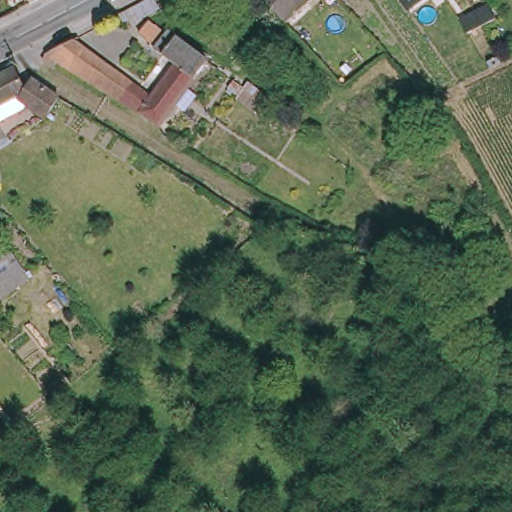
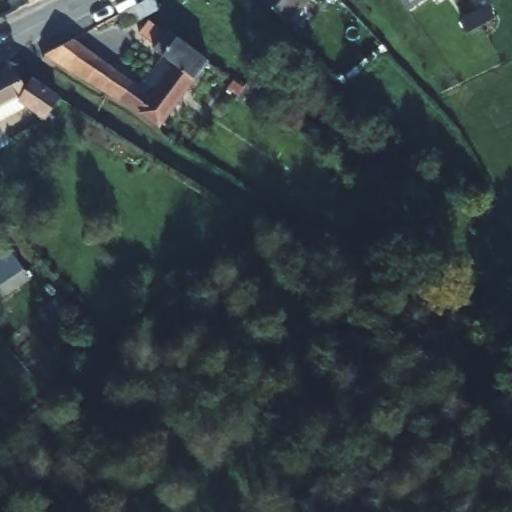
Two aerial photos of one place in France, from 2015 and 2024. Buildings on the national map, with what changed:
unchanged [(289,29),(276,16),(261,0),(319,0),(289,29)]
unchanged [(338,3),(335,0),(341,0),(338,3)]
unchanged [(409,13),(398,0),(424,0),(409,13)]
unchanged [(133,8),(140,24),(107,39),(99,25),(133,8)]
unchanged [(65,46),(78,40),(96,52),(158,97),(181,65),(161,48),(159,44),(146,34),(154,24),(169,35),(170,36),(174,31),(178,35),(213,61),(201,77),(166,124),(148,112),(146,113),(53,53),(65,46)]
unchanged [(22,93),(29,84),(54,99),(44,120),(43,120),(30,128),(28,123),(37,117),(23,106),(0,118),(0,80),(13,73),(22,93)]
unchanged [(0,297),(0,267),(15,255),(29,273),(0,297)]

